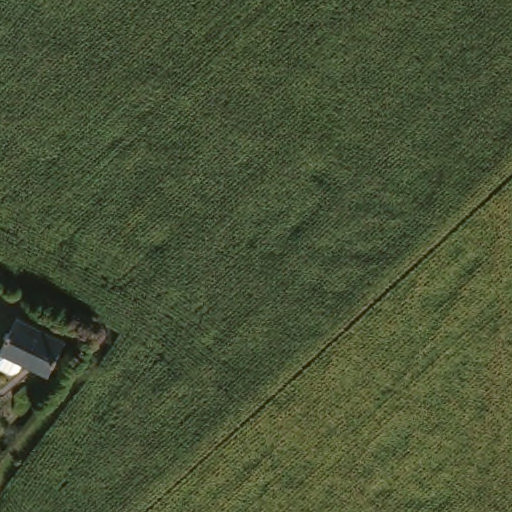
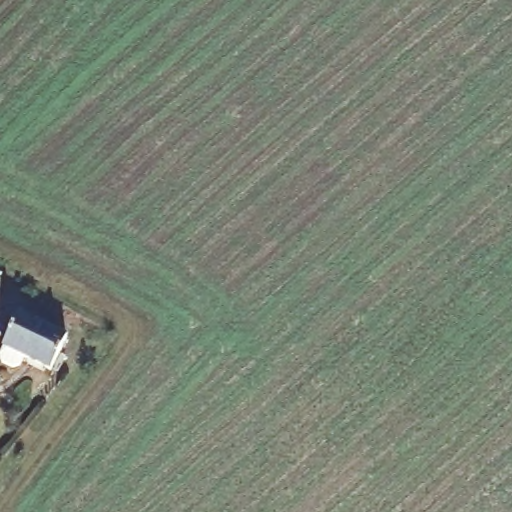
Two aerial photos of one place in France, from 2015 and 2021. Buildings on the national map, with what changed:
unchanged [(18,362),(6,357),(4,351),(8,342),(7,341),(22,308),(74,333),(59,365),(28,351),(24,360),(18,362)]

